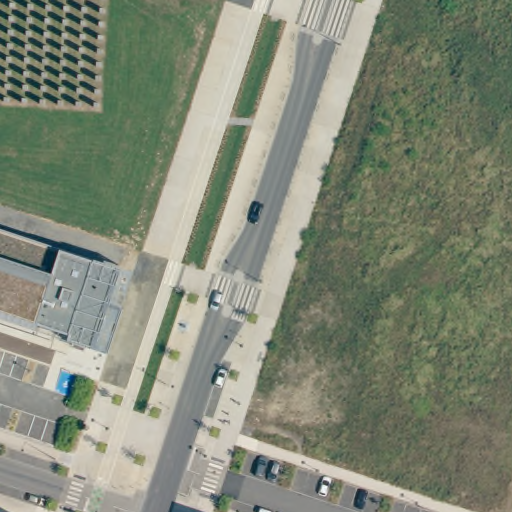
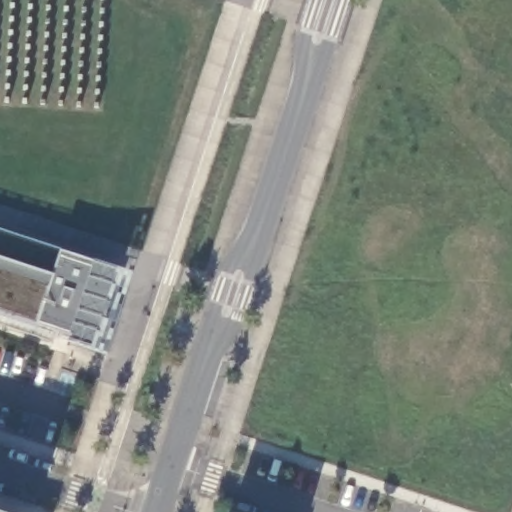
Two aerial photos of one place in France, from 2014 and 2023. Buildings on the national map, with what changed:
unchanged [(123,271),(98,351),(35,331),(0,319),(0,232),(61,252),(123,271)]

